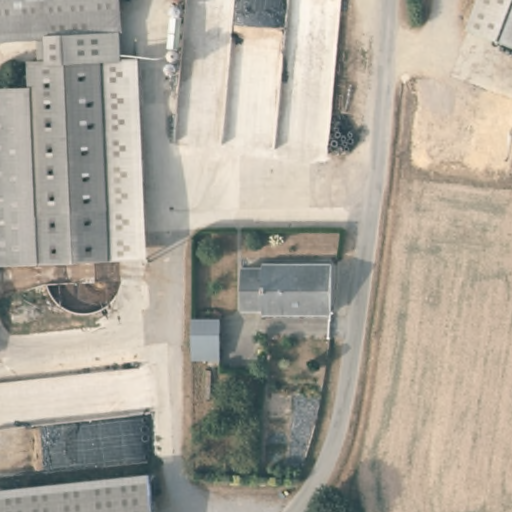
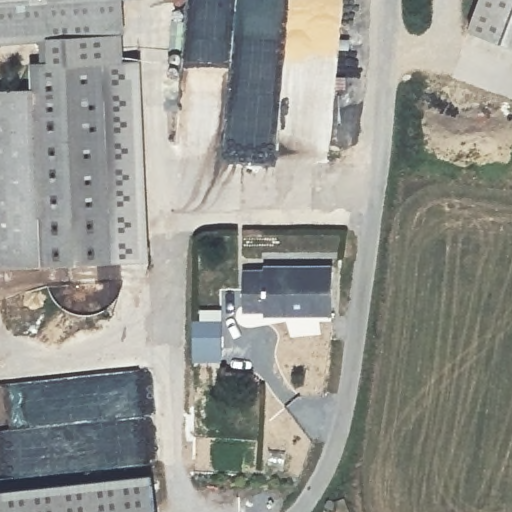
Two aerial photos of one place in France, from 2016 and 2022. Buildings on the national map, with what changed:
unchanged [(123,28),(0,35),(0,0),(122,0),(123,28)]
unchanged [(512,45),(478,34),(489,0),(512,0),(512,45)]
unchanged [(123,34),(124,55),(57,60),(55,37),(123,34)]
unchanged [(57,61),(57,60),(124,55),(126,108),(111,109),(36,114),(34,86),(33,62),(57,61)]
unchanged [(0,88),(34,86),(36,114),(30,114),(41,262),(0,263),(0,88)]
unchanged [(30,114),(36,114),(111,109),(126,108),(126,132),(129,260),(41,262),(30,114)]
unchanged [(263,317),(263,313),(243,313),(243,270),(264,270),(264,266),(334,266),(333,318),(263,317)]
unchanged [(192,320),(220,321),(220,361),(192,361),(192,320)]
unchanged [(154,512),(0,512),(0,494),(151,481),(154,512)]

